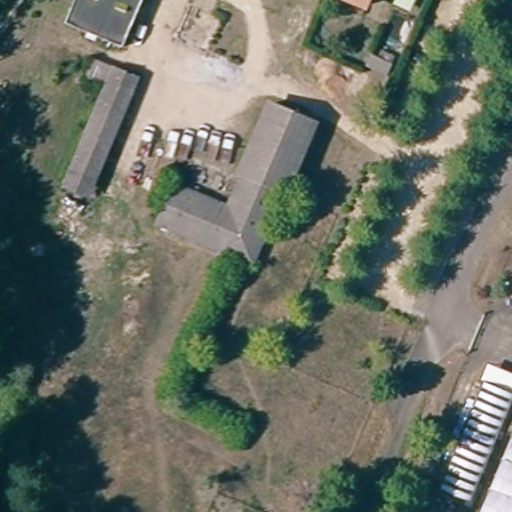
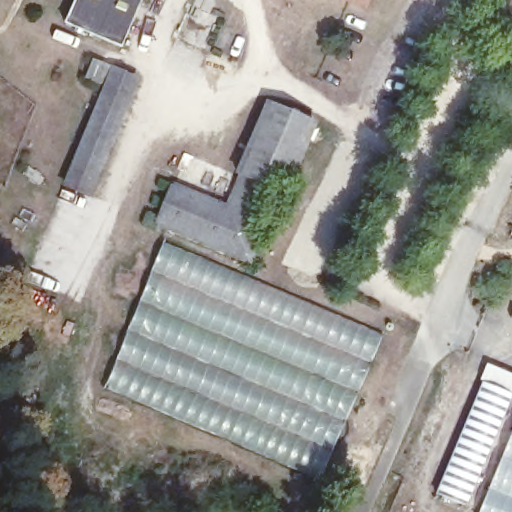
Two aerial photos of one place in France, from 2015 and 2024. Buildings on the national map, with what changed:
unchanged [(62,32),(75,0),(143,0),(119,56),(62,32)]
unchanged [(352,0),(365,0),(363,5),(352,0)]
unchanged [(112,82),(96,76),(102,60),(118,67),(112,82)]
unchanged [(94,194),(72,184),(120,67),(142,76),(94,194)]
unchanged [(248,172),(242,170),(273,97),(321,118),(291,188),(283,186),(253,256),(160,217),(176,180),(213,195),(235,204),(248,172)]
new [(382,338),(321,480),(105,391),(164,244),(382,338)]
unchanged [(468,506),(441,494),(490,378),(512,387),(512,401),(468,506)]
unchanged [(481,512),(512,440),(512,512),(481,512)]

